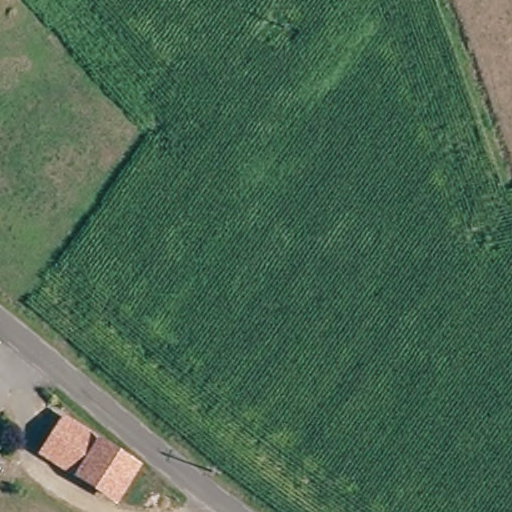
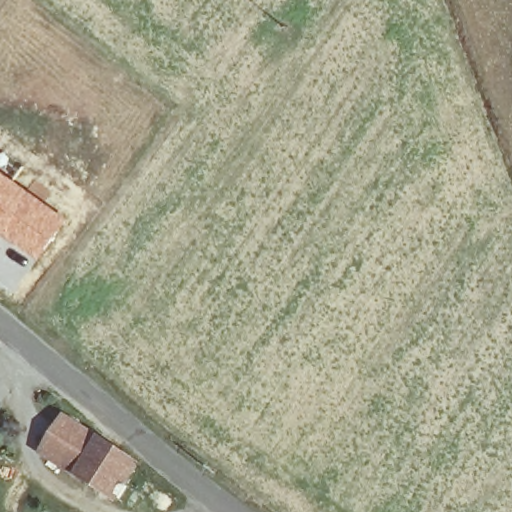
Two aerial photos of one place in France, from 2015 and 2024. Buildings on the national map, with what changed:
new [(33,178),(51,193),(45,201),(68,218),(35,262),(0,238),(0,168),(26,187),(33,178)]
unchanged [(101,438),(142,464),(116,505),(74,476),(39,453),(65,416),(101,438)]

